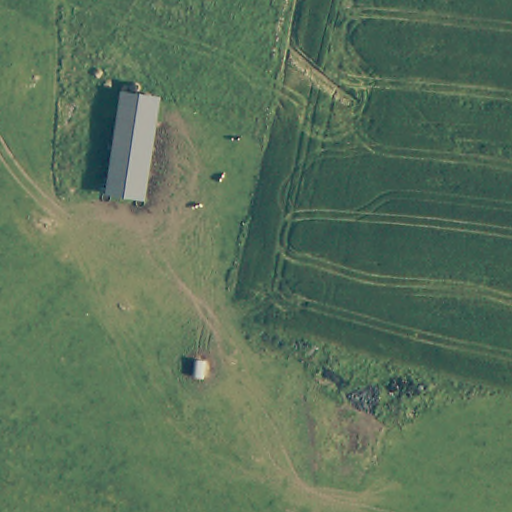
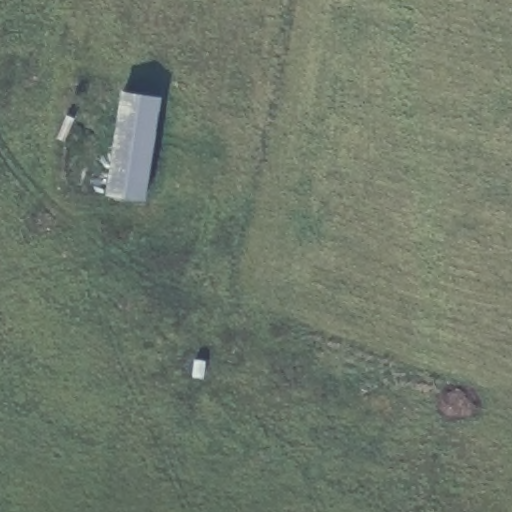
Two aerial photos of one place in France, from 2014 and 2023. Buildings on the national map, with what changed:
unchanged [(110,193),(118,90),(139,92),(153,94),(146,196),(127,195),(110,193)]

